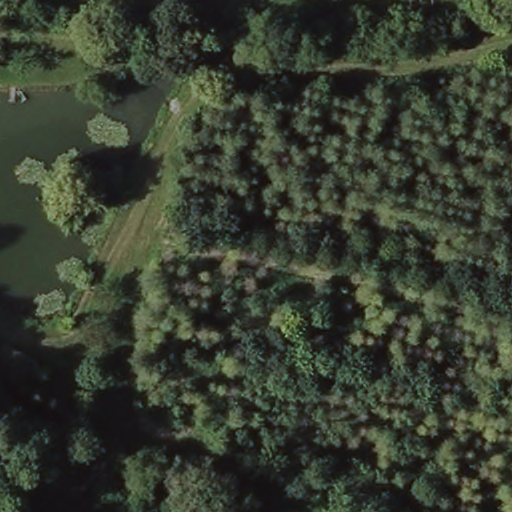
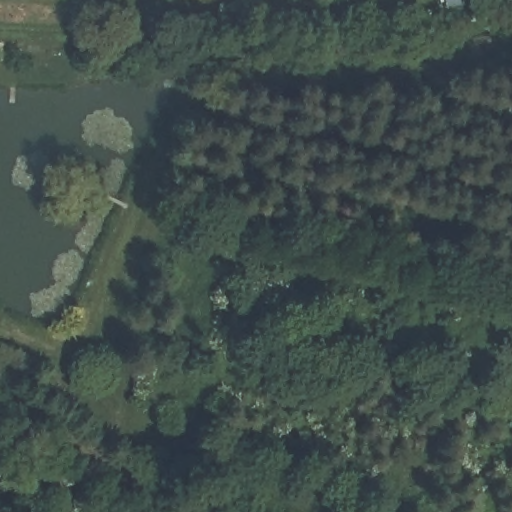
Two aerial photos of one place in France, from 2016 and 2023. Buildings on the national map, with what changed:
[]

